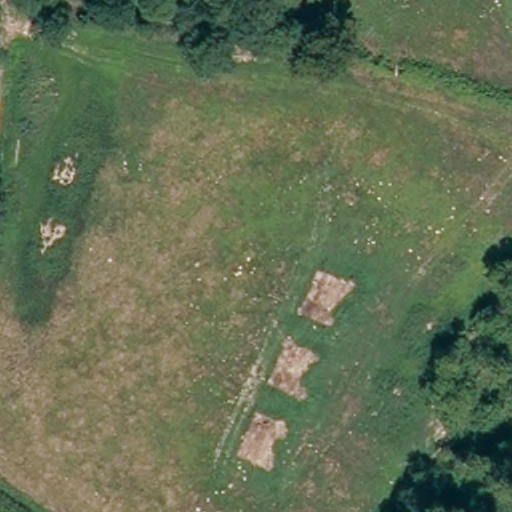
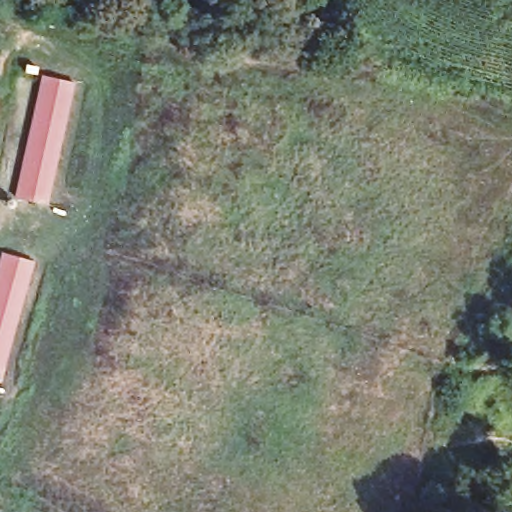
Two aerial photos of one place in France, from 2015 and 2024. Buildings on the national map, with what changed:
new [(73,81),(48,204),(15,197),(40,75),(73,81)]
new [(37,258),(1,377),(0,377),(0,268),(6,249),(37,258)]

